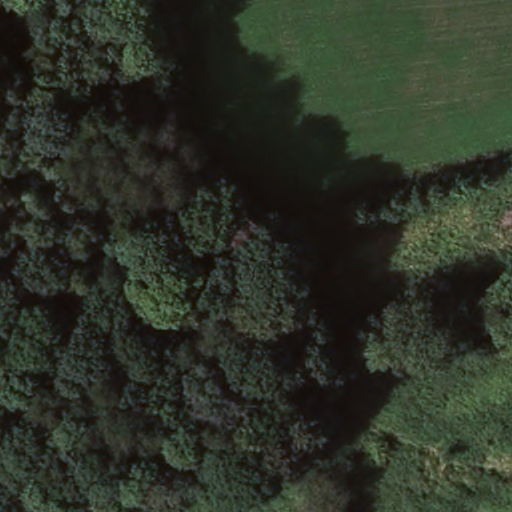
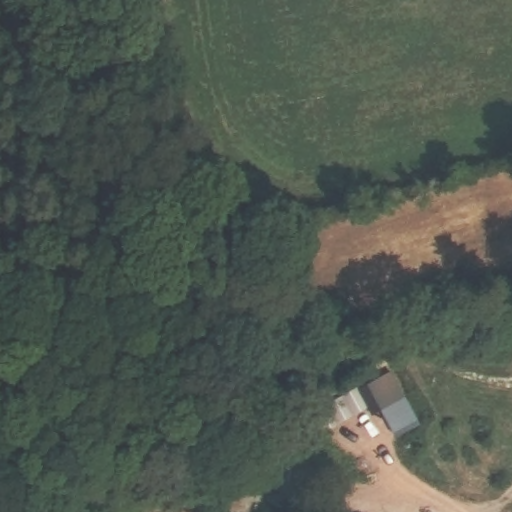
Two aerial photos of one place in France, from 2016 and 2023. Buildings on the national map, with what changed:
new [(389,367),(417,422),(395,432),(369,379),(389,367)]
unchanged [(243,455),(249,480),(192,488),(188,465),(243,455)]

